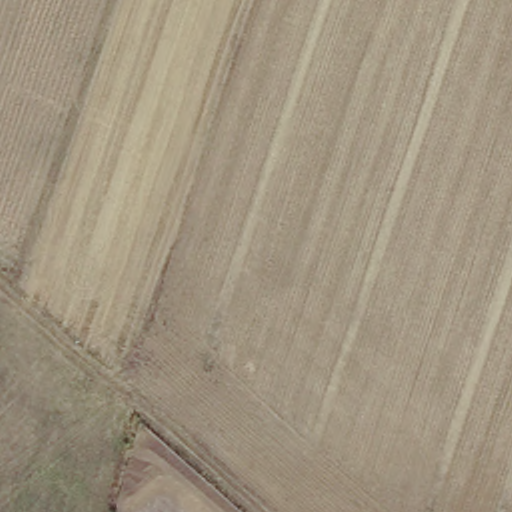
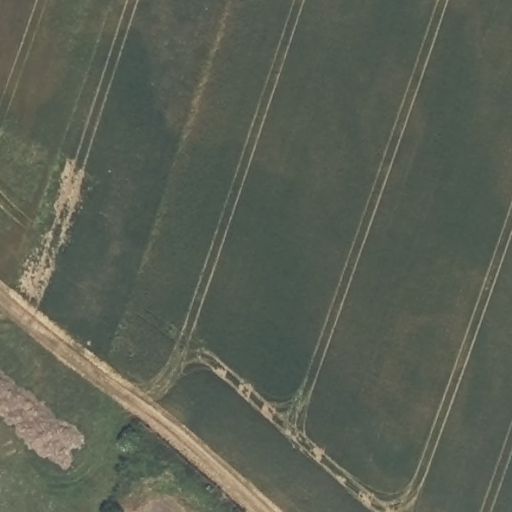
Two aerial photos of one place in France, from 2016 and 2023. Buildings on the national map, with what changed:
[]

